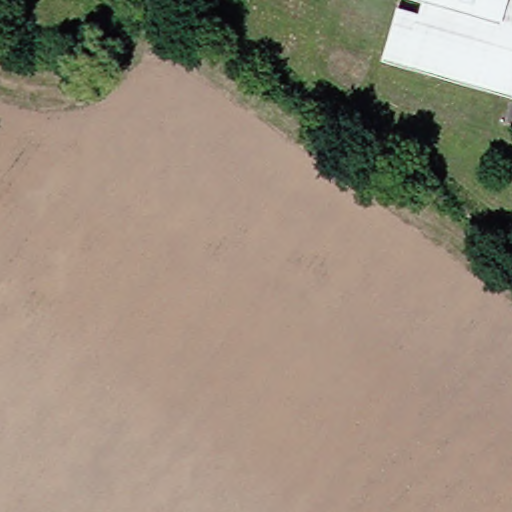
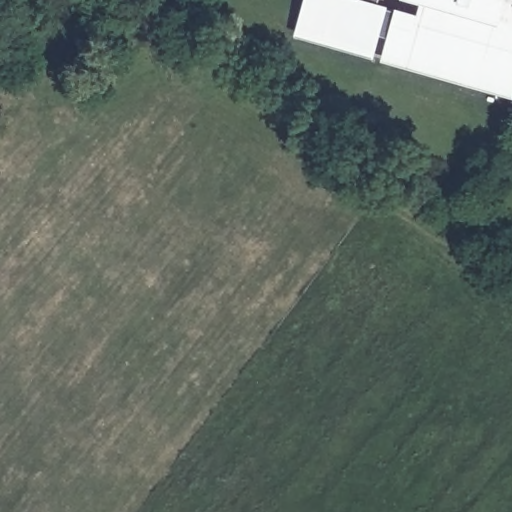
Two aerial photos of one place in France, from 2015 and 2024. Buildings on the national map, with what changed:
new [(379,1),(423,13),(421,20),(400,14),(393,39),(382,36),(377,59),(298,35),(307,0),(379,0),(379,1)]
unchanged [(400,14),(421,20),(426,0),(512,0),(512,94),(509,93),(387,58),(400,14)]

